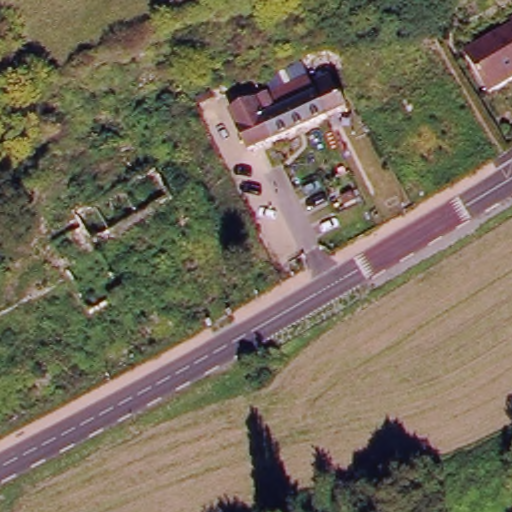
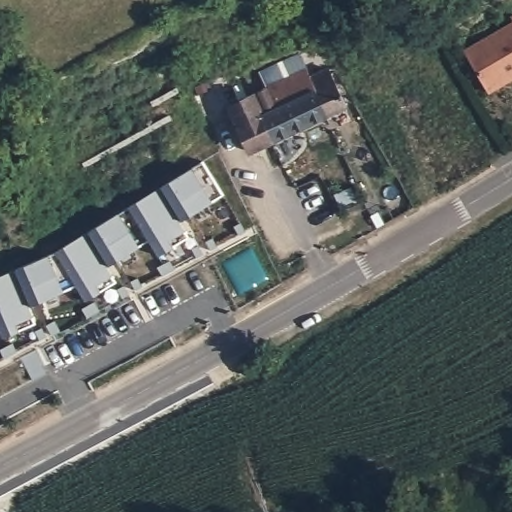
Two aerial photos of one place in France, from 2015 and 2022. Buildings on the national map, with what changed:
unchanged [(460,51),(508,21),(505,16),(512,13),(512,75),(485,92),(460,51)]
unchanged [(321,80),(325,78),(342,115),(247,159),(226,116),(264,98),(256,81),(296,62),(305,79),(317,73),(321,80)]
new [(212,201),(182,221),(178,223),(184,232),(187,238),(173,247),(158,256),(149,241),(140,248),(108,266),(106,267),(111,276),(115,283),(100,292),(86,301),(76,286),(62,291),(28,307),(32,317),(35,324),(18,331),(3,338),(0,331),(0,277),(13,271),(50,256),(56,252),(88,232),(120,214),(129,208),(161,188),(192,166),(203,159),(223,195),(212,201)]

